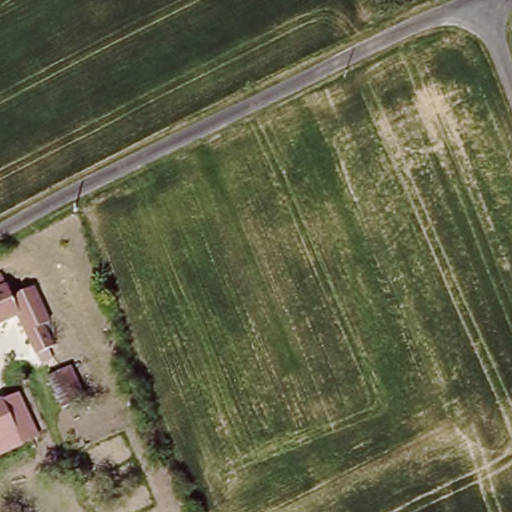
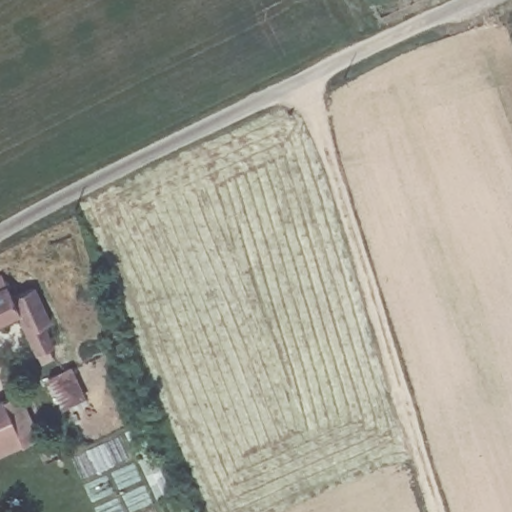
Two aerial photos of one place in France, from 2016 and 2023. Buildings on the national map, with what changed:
unchanged [(13,297),(28,289),(37,285),(45,302),(52,317),(40,323),(52,347),(49,349),(52,357),(53,359),(52,359),(41,365),(17,318),(0,326),(0,276),(2,275),(13,297)]
unchanged [(57,404),(45,381),(67,371),(82,401),(60,412),(57,404)]
unchanged [(0,397),(0,393),(19,384),(39,423),(18,434),(0,397)]
unchanged [(18,434),(0,442),(0,397),(18,434)]

